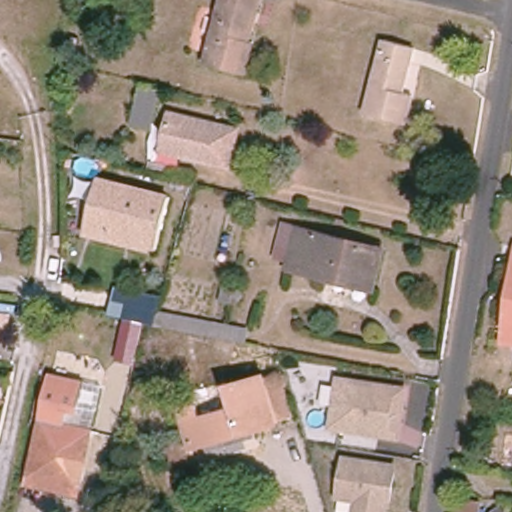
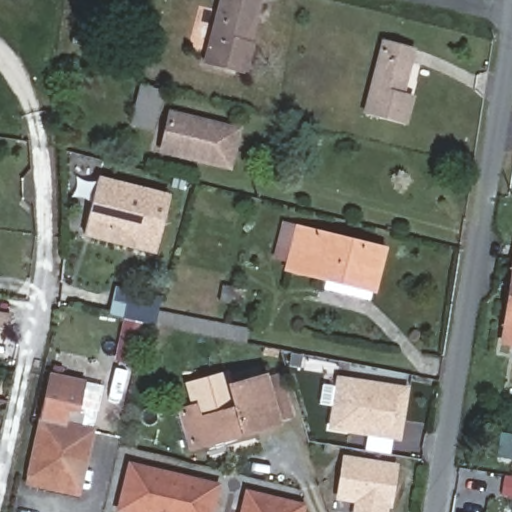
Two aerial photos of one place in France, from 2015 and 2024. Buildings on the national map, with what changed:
unchanged [(242,41),(254,44),(246,75),(205,64),(222,0),(253,0),(242,41)]
unchanged [(413,95),(406,125),(365,114),(384,40),(415,48),(403,93),(413,95)]
unchanged [(161,92),(152,129),(132,124),(142,86),(161,92)]
unchanged [(180,156),(181,150),(163,145),(170,113),(239,130),(230,168),(180,156)]
unchanged [(155,251),(83,235),(97,176),(169,194),(155,251)]
unchanged [(375,291),(287,269),(289,261),(275,257),(283,224),(385,250),(375,291)]
unchanged [(156,311),(248,328),(245,343),(109,312),(114,288),(160,297),(156,311)]
unchanged [(512,295),(512,344),(505,343),(512,295)]
unchanged [(8,329),(0,327),(0,313),(10,315),(8,329)]
unchanged [(77,413),(67,411),(65,425),(41,420),(49,375),(82,381),(77,413)]
unchanged [(399,441),(326,429),(334,375),(407,386),(399,441)]
unchanged [(229,386),(265,376),(279,424),(243,434),(191,449),(180,410),(195,406),(199,419),(235,409),(229,386)]
unchanged [(65,425),(92,431),(80,489),(28,478),(41,420),(65,425)]
unchanged [(385,508),(385,512),(351,512),(353,502),(333,499),(341,455),(397,463),(391,509),(385,508)]
new [(128,461),(221,483),(214,512),(118,512),(116,512),(128,461)]
new [(306,503),(304,512),(240,512),(246,488),(306,503)]
demolished [(482,504),(481,512),(458,512),(460,500),(482,504)]

